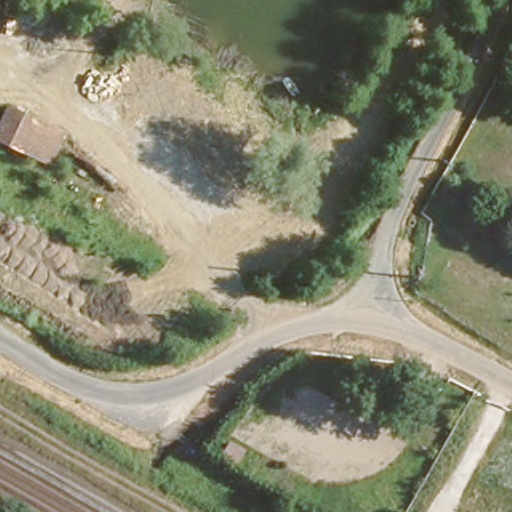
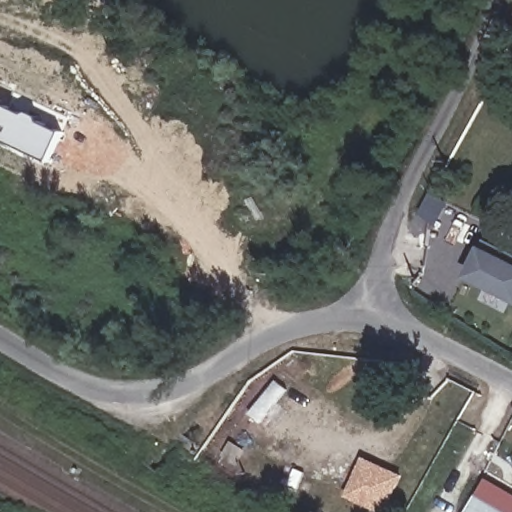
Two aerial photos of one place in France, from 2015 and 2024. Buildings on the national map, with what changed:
unchanged [(66,131),(50,165),(0,142),(0,119),(6,105),(66,131)]
new [(483,238),(512,254),(512,301),(464,277),(478,245),(483,238)]
unchanged [(276,384),(286,391),(262,421),(252,413),(276,384)]
new [(378,512),(344,496),(362,457),(403,475),(385,512),(378,512)]
new [(512,493),(512,512),(467,512),(486,478),(512,493)]

